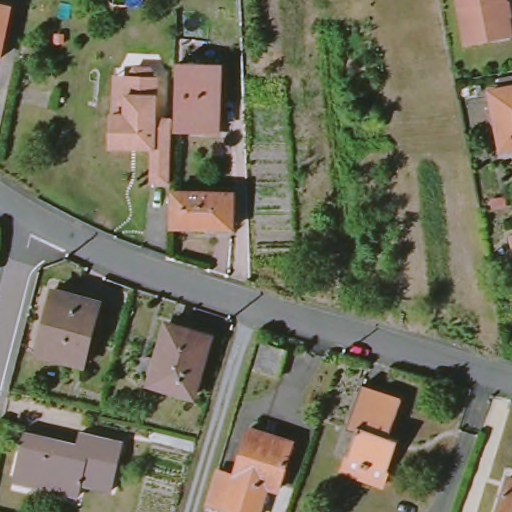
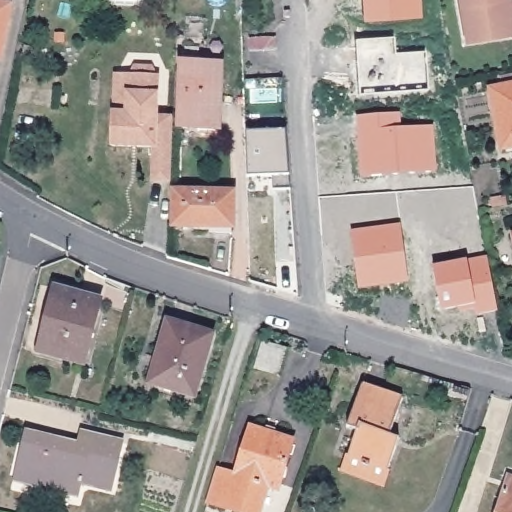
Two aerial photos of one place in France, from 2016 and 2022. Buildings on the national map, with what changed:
new [(363,0),(421,0),(424,21),(365,25),(363,0)]
unchanged [(463,45),(456,0),(509,0),(512,18),(512,37),(463,45)]
unchanged [(0,56),(0,4),(10,6),(0,56)]
new [(359,96),(353,40),(394,37),(395,54),(429,54),(430,88),(359,96)]
unchanged [(192,126),(192,124),(171,122),(174,59),(217,61),(215,93),(210,93),(209,127),(192,126)]
unchanged [(152,75),(150,117),(153,117),(169,117),(167,147),(167,152),(167,167),(167,177),(150,177),(147,177),(149,144),(107,142),(109,110),(110,74),(125,74),(131,74),(134,70),(146,71),(149,75),(152,75)]
unchanged [(490,92),(512,88),(512,149),(502,152),(490,92)]
new [(360,180),(354,117),(400,113),(404,127),(435,126),(439,175),(360,180)]
new [(290,186),(250,186),(247,143),(289,141),(290,186)]
unchanged [(232,221),(232,235),(195,234),(195,227),(173,226),(174,192),(232,194),(232,221)]
new [(358,291),(351,230),(402,224),(407,285),(358,291)]
new [(479,316),(478,304),(440,312),(434,265),(486,257),(497,312),(479,316)]
unchanged [(40,353),(56,290),(100,302),(84,365),(40,353)]
unchanged [(150,384),(167,322),(213,336),(195,397),(150,384)]
unchanged [(255,368),(264,342),(289,350),(280,377),(255,368)]
unchanged [(342,468),(348,453),(357,427),(347,423),(363,380),(402,394),(390,431),(399,435),(387,467),(382,483),(342,468)]
unchanged [(40,482),(42,473),(15,467),(25,427),(54,433),(53,438),(75,444),(80,427),(124,437),(112,486),(83,478),(80,492),(40,482)]
unchanged [(218,470),(235,475),(250,428),(294,442),(279,490),(267,487),(259,512),(234,512),(207,503),(218,470)]
unchanged [(509,473),(512,474),(512,512),(496,512),(509,473)]

